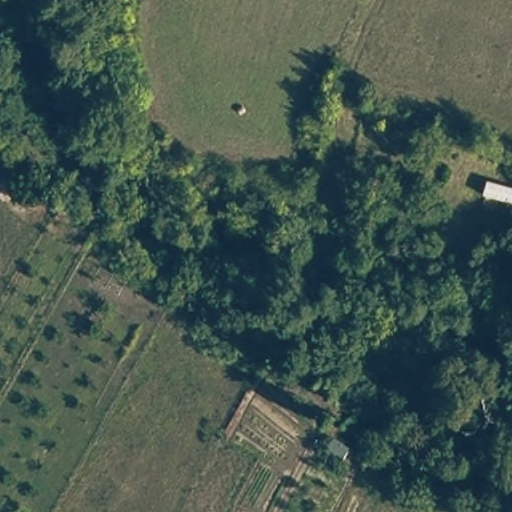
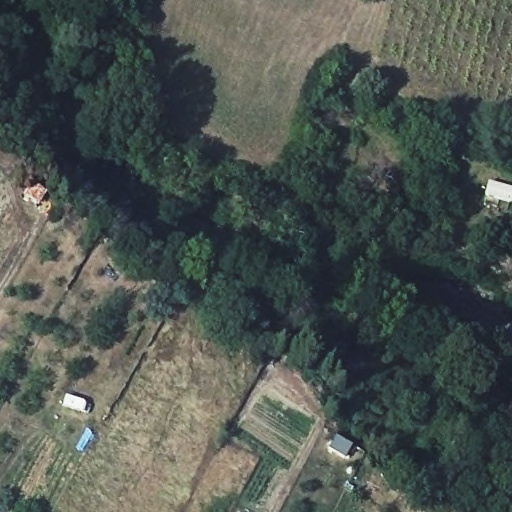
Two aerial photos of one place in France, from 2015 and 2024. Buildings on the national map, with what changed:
unchanged [(512,187),(512,204),(482,197),(486,180),(512,187)]

